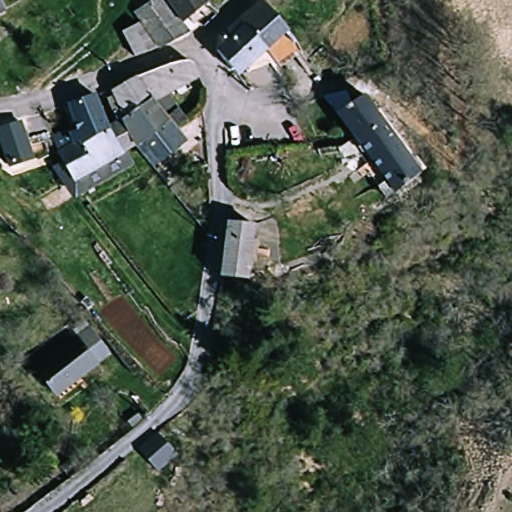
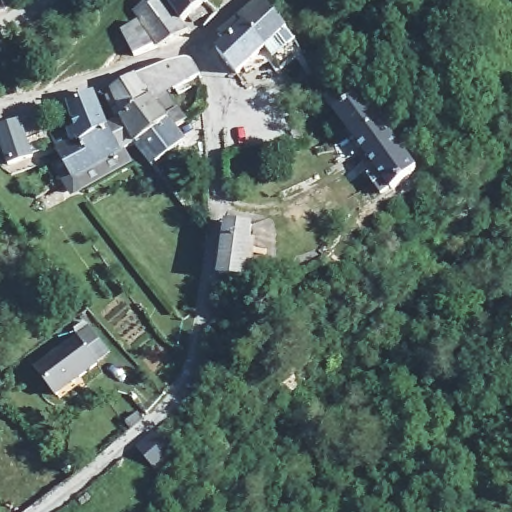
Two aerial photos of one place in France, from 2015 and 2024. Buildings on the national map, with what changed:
unchanged [(149,0),(154,0),(176,26),(186,35),(157,52),(130,15),(149,0)]
unchanged [(196,28),(192,22),(188,24),(184,19),(178,24),(161,0),(200,0),(212,14),(196,28)]
unchanged [(282,55),(278,51),(270,57),(245,25),(238,17),(256,0),(263,0),(298,47),(282,55)]
unchanged [(0,14),(0,7),(3,12),(0,14)]
unchanged [(270,57),(292,82),(284,84),(268,85),(251,60),(239,70),(219,84),(206,55),(210,50),(245,25),(270,57)]
unchanged [(121,38),(139,30),(151,56),(134,65),(121,38)]
unchanged [(189,84),(191,88),(179,97),(174,90),(171,92),(168,86),(162,91),(182,123),(169,131),(154,108),(135,81),(188,62),(201,77),(189,84)]
unchanged [(60,154),(52,140),(68,134),(60,110),(92,99),(102,119),(113,112),(111,95),(135,81),(154,108),(169,131),(177,144),(151,162),(135,141),(128,146),(120,150),(129,168),(82,194),(60,154)]
unchanged [(380,122),(353,143),(336,122),(326,100),(345,92),(356,102),(364,100),(380,122)]
unchanged [(0,144),(0,127),(21,121),(34,159),(9,167),(0,144)]
unchanged [(380,122),(388,133),(395,144),(369,163),(364,159),(318,177),(313,154),(341,150),(344,148),(353,143),(380,122)]
unchanged [(393,197),(386,207),(374,191),(383,185),(374,170),(359,181),(356,179),(354,174),(359,171),(369,163),(395,144),(416,174),(393,197)]
unchanged [(218,280),(227,217),(243,216),(244,231),(252,231),(246,283),(218,280)]
unchanged [(107,360),(60,396),(37,364),(83,330),(107,360)]
unchanged [(153,476),(132,453),(154,437),(172,457),(153,476)]

